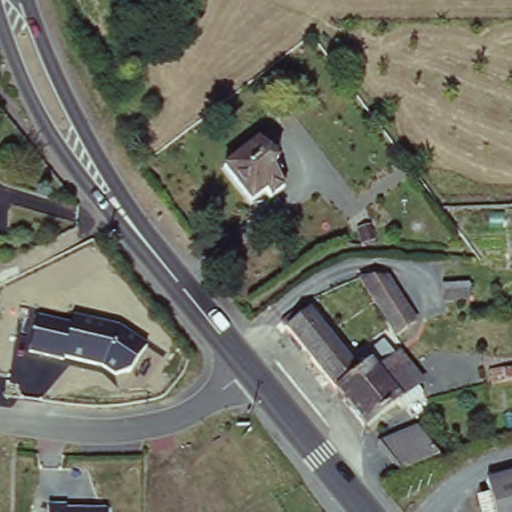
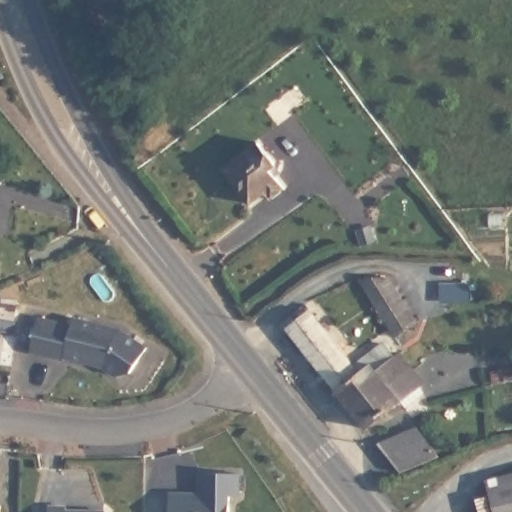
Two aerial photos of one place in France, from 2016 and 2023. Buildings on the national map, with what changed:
unchanged [(277,160),(270,165),(286,185),(270,197),(263,190),(253,198),(226,165),(259,139),(277,160)]
unchanged [(388,274),(414,323),(395,333),(358,277),(388,274)]
unchanged [(484,288),(512,288),(512,313),(485,313),(471,312),(471,288),(484,288)]
unchanged [(280,326),(304,307),(333,340),(307,360),(280,326)]
unchanged [(70,323),(72,316),(120,329),(148,345),(130,375),(117,377),(104,367),(29,351),(37,313),(70,323)]
unchanged [(333,340),(356,365),(330,386),(307,360),(333,340)]
unchanged [(418,382),(421,387),(404,401),(400,395),(363,425),(348,408),(330,386),(356,365),(384,342),(388,346),(394,342),(408,359),(412,364),(423,377),(418,382)]
unchanged [(512,376),(492,376),(492,365),(512,363),(512,376)]
unchanged [(409,467),(387,440),(418,427),(440,455),(409,467)]
unchanged [(512,469),(512,512),(495,512),(488,475),(512,469)]
new [(197,473),(238,474),(238,496),(228,496),(228,512),(168,512),(168,495),(198,495),(197,473)]
unchanged [(63,505),(65,510),(102,511),(102,512),(49,512),(49,505),(63,505)]

